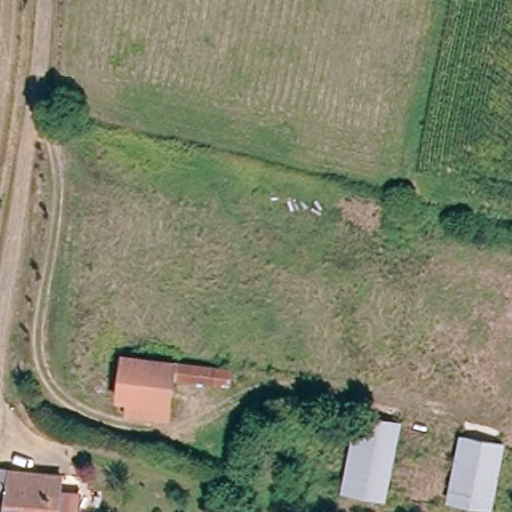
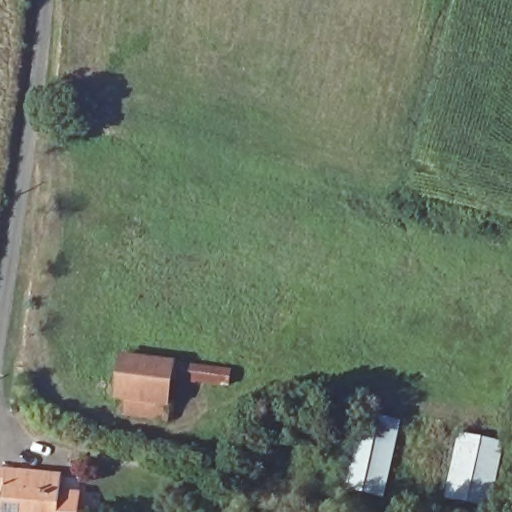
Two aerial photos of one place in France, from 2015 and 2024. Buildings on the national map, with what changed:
unchanged [(125,407),(115,405),(123,354),(178,360),(177,364),(233,369),(229,389),(175,385),(171,429),(123,426),(125,407)]
unchanged [(357,414),(400,422),(386,502),(344,494),(357,414)]
unchanged [(459,435),(503,443),(494,510),(446,504),(459,435)]
unchanged [(4,492),(0,492),(0,470),(56,472),(55,489),(75,490),(75,512),(3,512),(4,492)]

